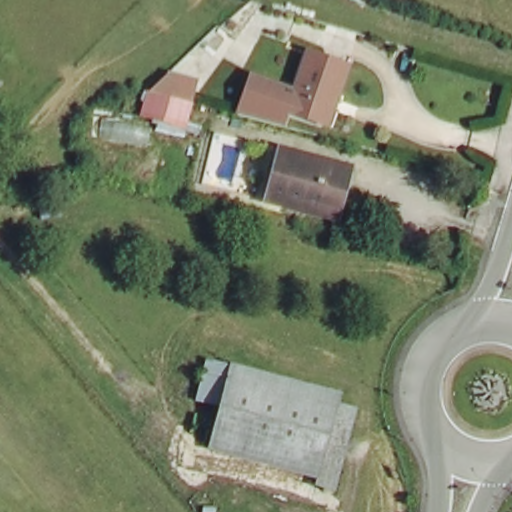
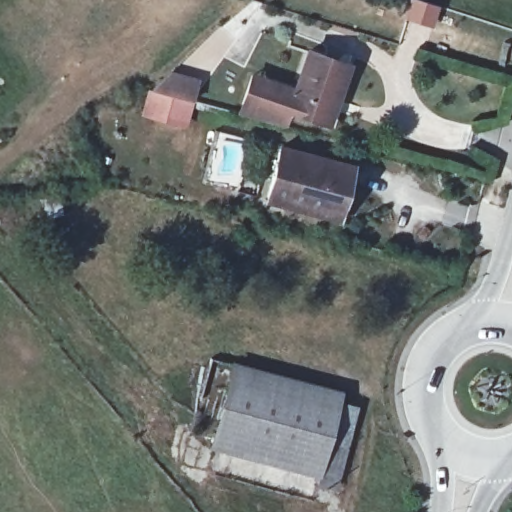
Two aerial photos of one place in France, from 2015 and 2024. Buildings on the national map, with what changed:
unchanged [(289,114),(298,85),(309,48),(356,64),(335,128),(289,114)]
unchanged [(148,88),(153,89),(171,71),(199,78),(192,102),(188,121),(204,125),(200,139),(178,135),(178,140),(154,134),(155,118),(137,114),(148,88)]
unchanged [(241,107),(251,71),(298,85),(289,114),(241,107)]
unchanged [(355,164),(340,219),(268,200),(283,145),(355,164)]
unchanged [(318,478),(222,454),(245,371),(340,395),(338,402),(318,478)]
unchanged [(358,407),(338,486),(317,481),(318,478),(338,402),(358,407)]

